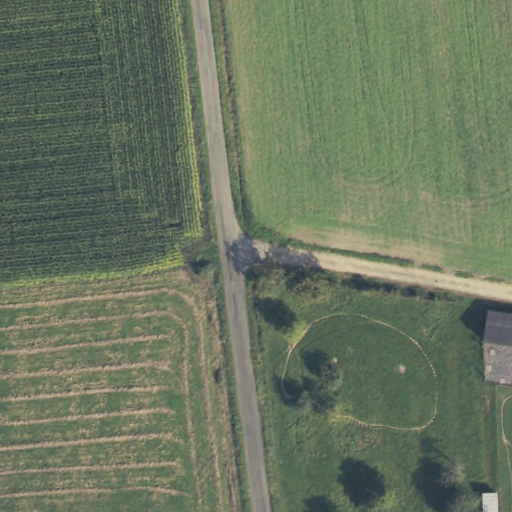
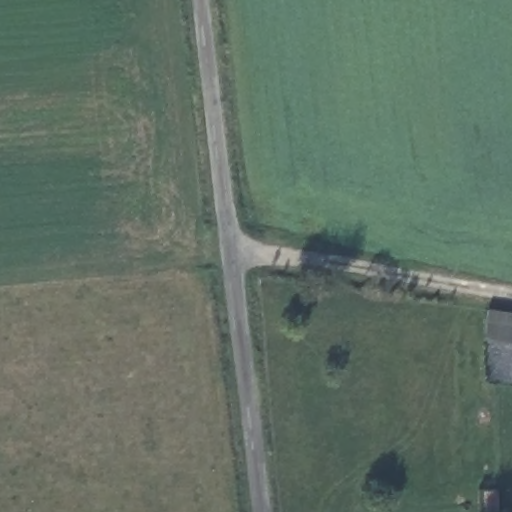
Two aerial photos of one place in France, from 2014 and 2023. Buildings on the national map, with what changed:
unchanged [(488,310),(512,313),(512,344),(484,340),(488,310)]

